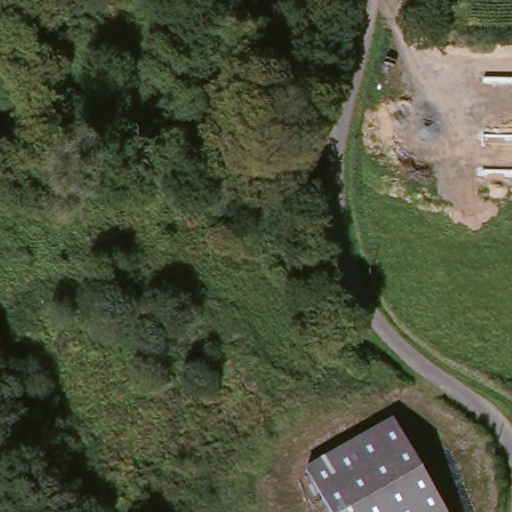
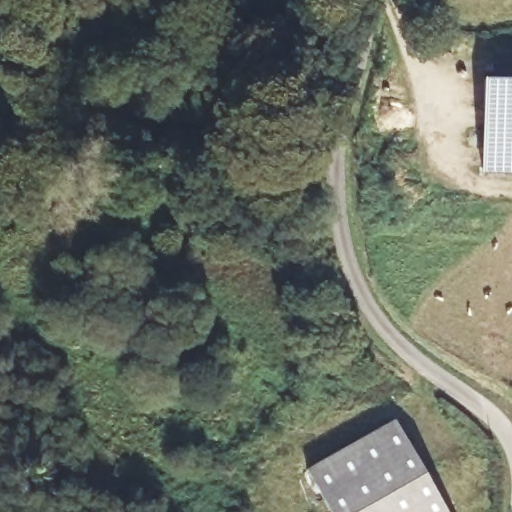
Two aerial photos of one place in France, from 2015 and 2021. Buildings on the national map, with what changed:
new [(482,77),(512,78),(512,173),(481,172),(482,77)]
unchanged [(305,472),(388,423),(440,512),(327,512),(305,472)]

